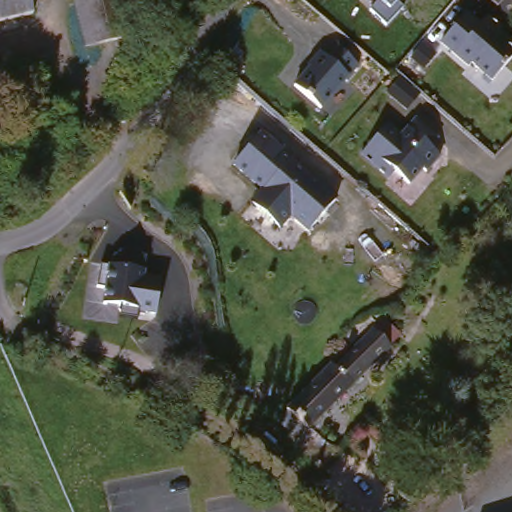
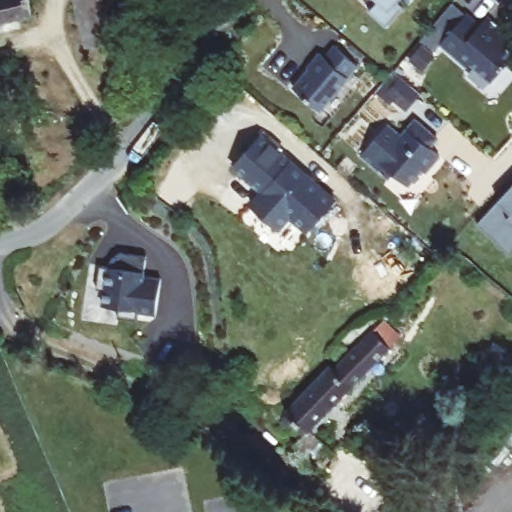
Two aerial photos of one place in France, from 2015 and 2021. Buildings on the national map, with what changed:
unchanged [(37,0),(41,15),(23,19),(3,24),(0,24),(0,0),(37,0)]
unchanged [(376,0),(400,0),(404,4),(387,24),(369,7),(376,0)]
unchanged [(492,17),(506,30),(504,32),(512,39),(512,47),(511,48),(512,48),(512,63),(496,82),(476,65),(473,69),(445,45),(471,15),(484,26),(492,17)]
unchanged [(299,88),(314,70),(311,68),(324,53),(328,57),(338,46),(361,65),(326,110),(299,88)]
new [(401,75),(420,91),(407,107),(387,91),(401,75)]
unchanged [(401,135),(416,118),(436,136),(429,145),(441,155),(427,171),(423,167),(409,184),(395,172),(389,178),(361,154),(389,123),(401,135)]
unchanged [(262,133),(338,198),(313,229),(293,212),(282,226),(255,203),(266,190),(236,164),(262,133)]
new [(512,185),(512,252),(509,255),(477,225),(512,185)]
unchanged [(154,313),(99,304),(104,265),(115,266),(118,252),(146,257),(143,277),(159,280),(154,313)]
unchanged [(335,403),(360,430),(343,446),(316,421),(321,416),(299,403),(309,393),(308,389),(355,343),(359,345),(394,310),(411,327),(335,403)]

